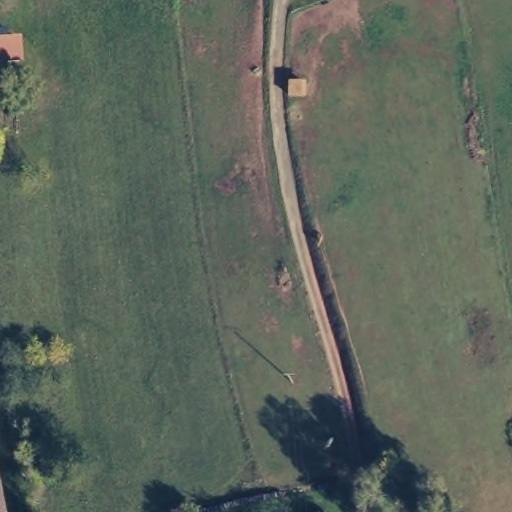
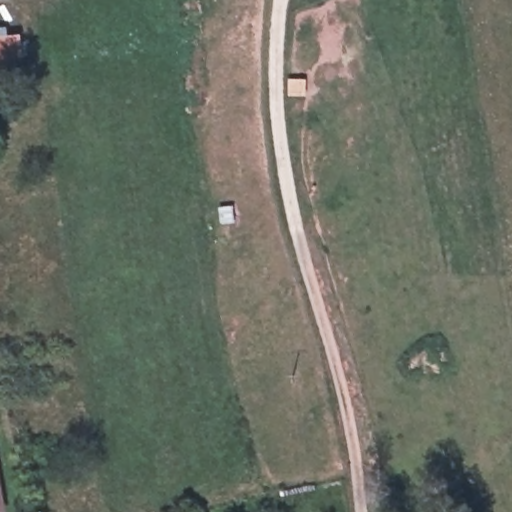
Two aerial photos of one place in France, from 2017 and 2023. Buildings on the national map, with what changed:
unchanged [(12,55),(0,57),(0,35),(10,34),(12,55)]
unchanged [(0,501),(0,494),(2,500),(0,501)]

